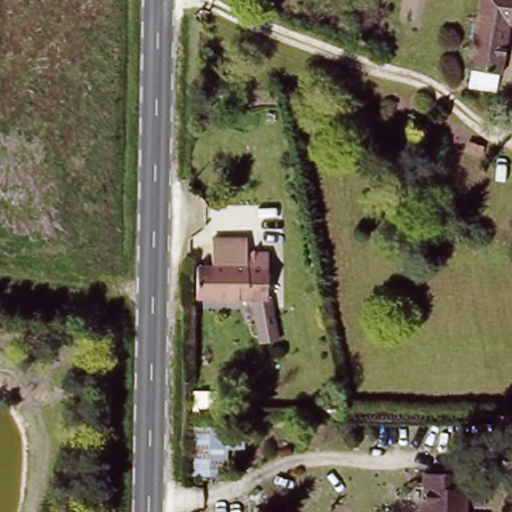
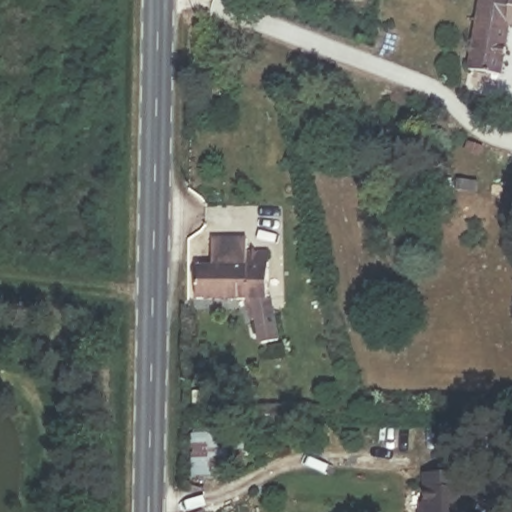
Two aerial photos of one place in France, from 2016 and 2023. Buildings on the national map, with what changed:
unchanged [(497,74),(466,67),(477,0),(512,0),(512,26),(505,25),(497,74)]
unchanged [(255,345),(247,300),(190,302),(189,271),(210,270),(208,249),(241,247),(242,256),(250,255),(252,296),(263,295),(272,342),(255,345)]
unchanged [(245,452),(228,452),(228,478),(188,479),(190,423),(245,425),(245,452)]
unchanged [(457,483),(457,500),(461,499),(461,512),(425,512),(423,482),(457,483)]

